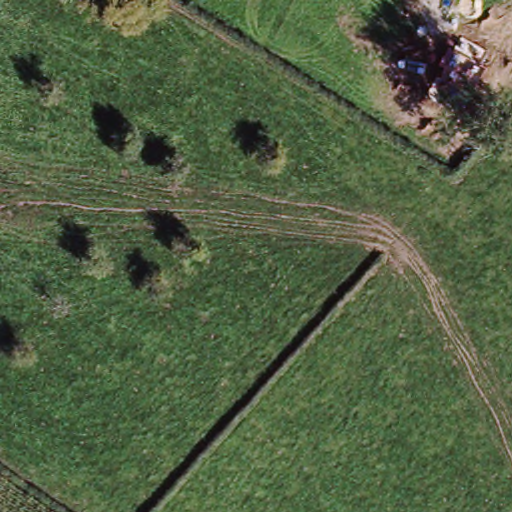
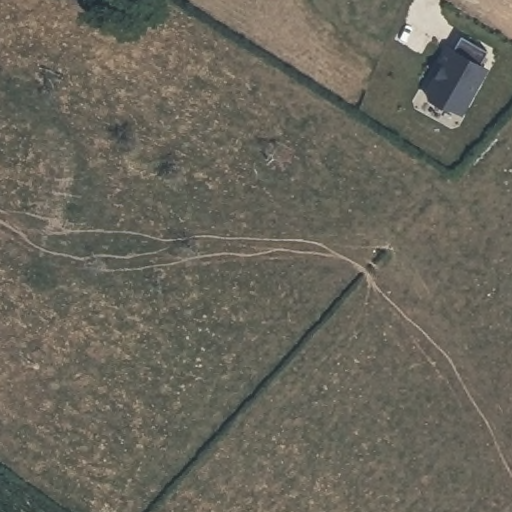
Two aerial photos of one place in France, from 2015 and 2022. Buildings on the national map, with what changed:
new [(443,67),(446,69),(452,59),(447,55),(458,39),(462,42),(472,28),(497,45),(487,58),(493,62),(460,116),(444,105),(442,108),(428,98),(427,91),(443,67)]

